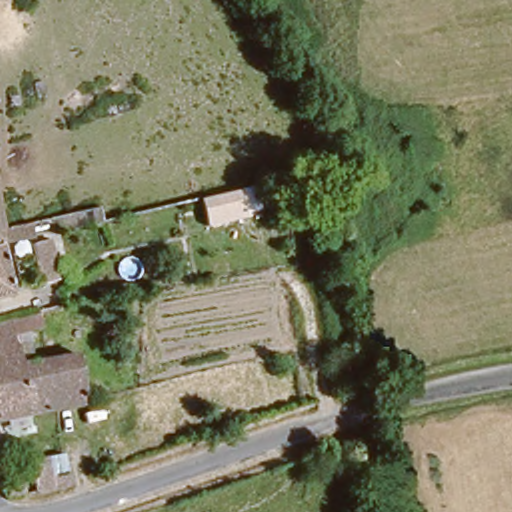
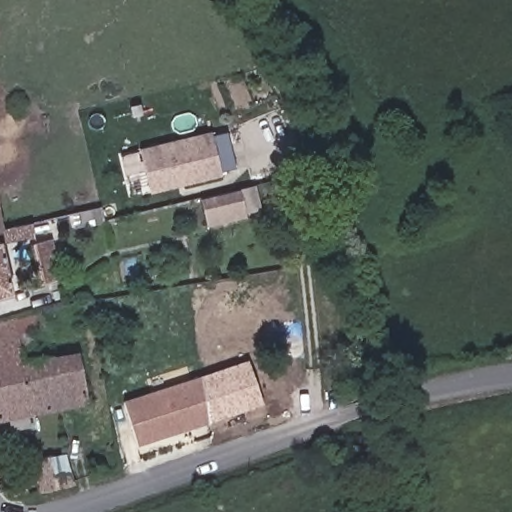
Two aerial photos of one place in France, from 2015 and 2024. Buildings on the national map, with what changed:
new [(216,132),(226,173),(152,190),(142,149),(216,132)]
unchanged [(242,190),(245,204),(205,212),(202,199),(242,190)]
unchanged [(0,229),(0,217),(2,229),(0,229)]
unchanged [(5,241),(3,241),(12,289),(0,292),(0,229),(2,229),(5,241)]
unchanged [(42,282),(32,244),(52,239),(63,278),(42,282)]
unchanged [(23,354),(21,341),(0,346),(0,319),(15,315),(42,309),(46,325),(30,330),(37,361),(81,352),(88,399),(65,404),(60,385),(31,391),(23,354)]
unchanged [(0,346),(21,341),(23,354),(31,391),(60,385),(65,404),(0,417),(0,346)]
new [(248,360),(263,403),(209,423),(201,375),(248,360)]
new [(137,445),(123,399),(201,375),(209,423),(137,445)]
unchanged [(38,489),(31,459),(51,455),(56,470),(72,465),(75,480),(38,489)]
unchanged [(13,494),(7,494),(6,486),(25,482),(27,491),(13,494)]

